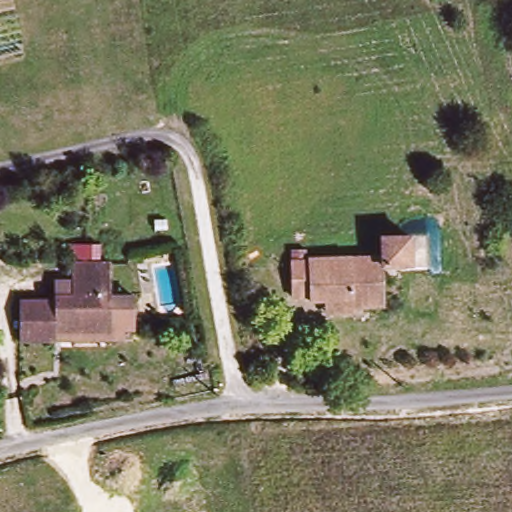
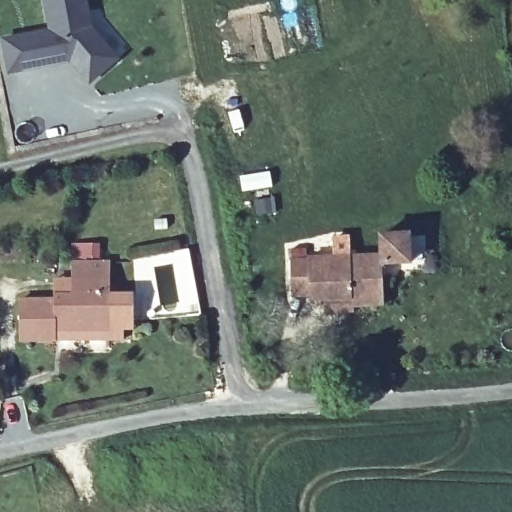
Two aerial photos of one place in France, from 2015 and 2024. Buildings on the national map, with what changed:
new [(121,58),(91,84),(72,62),(10,75),(2,37),(48,27),(44,0),(88,0),(93,26),(121,58)]
unchanged [(329,313),(328,303),(312,304),(312,298),(294,299),(293,265),(310,264),(310,261),(382,258),(381,238),(410,237),(411,265),(382,267),(385,308),(355,310),(355,313),(329,313)]
unchanged [(54,302),(74,302),(74,269),(113,270),(112,306),(105,306),(105,339),(59,339),(58,347),(21,347),(21,307),(54,307),(54,302)]

